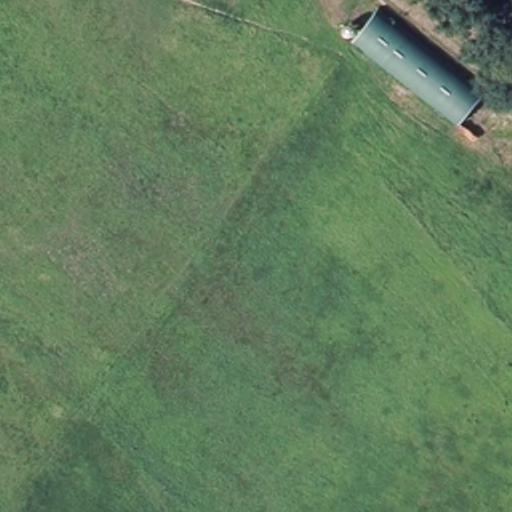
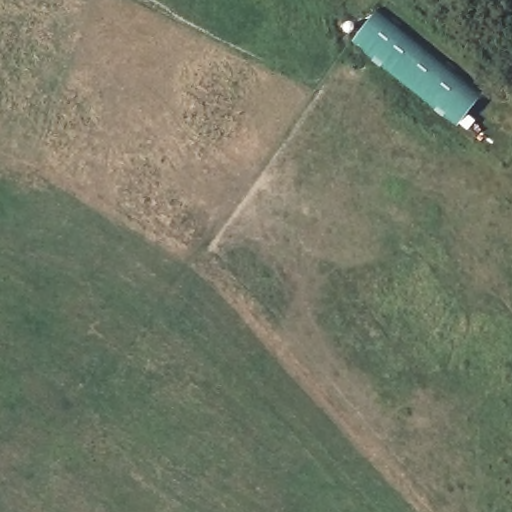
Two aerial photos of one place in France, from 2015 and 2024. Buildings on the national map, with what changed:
unchanged [(488,93),(461,132),(351,47),(380,10),(488,93)]

